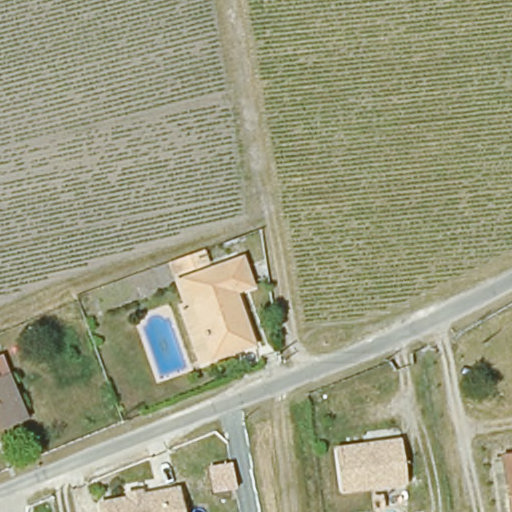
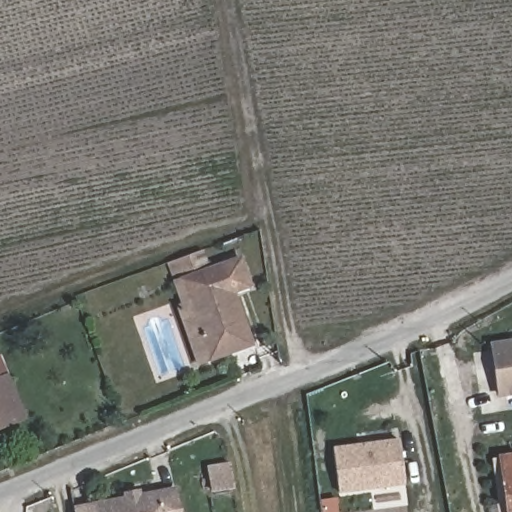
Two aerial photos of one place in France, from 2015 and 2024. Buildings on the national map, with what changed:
unchanged [(183,307),(189,305),(180,280),(185,279),(242,259),(250,286),(235,291),(253,342),(213,356),(200,360),(183,307)]
new [(498,397),(491,342),(512,339),(512,395),(498,397)]
unchanged [(11,378),(28,417),(0,428),(0,357),(3,356),(11,378)]
unchanged [(398,442),(406,484),(340,497),(333,454),(398,442)]
unchanged [(489,461),(500,459),(499,458),(512,456),(512,512),(495,512),(489,461)]
unchanged [(181,512),(102,512),(100,503),(176,488),(181,512)]
new [(76,507),(100,503),(102,512),(76,512),(76,507)]

